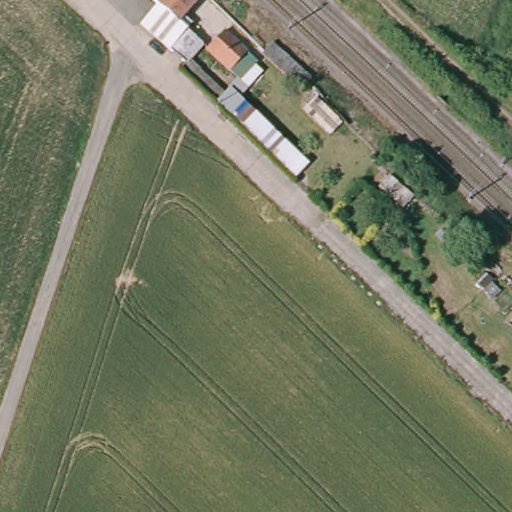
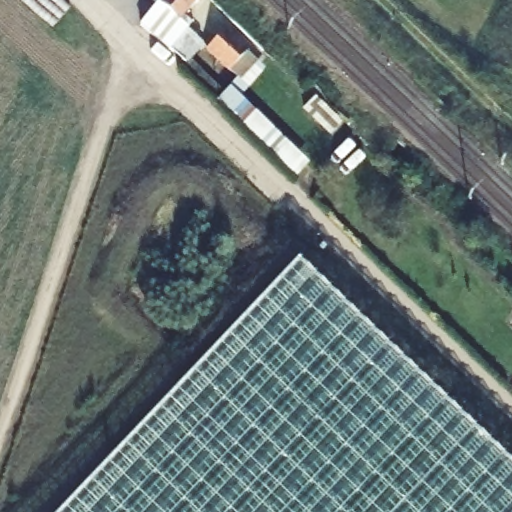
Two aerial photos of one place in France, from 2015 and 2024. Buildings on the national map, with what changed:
unchanged [(176,19),(181,25),(160,46),(138,24),(153,3),(150,0),(193,0),(176,19)]
demolished [(222,70),(198,48),(218,28),(241,49),(222,70)]
new [(265,67),(240,95),(309,163),(296,178),(216,102),(237,79),(207,50),(226,29),(265,67)]
new [(512,483),(512,512),(66,512),(282,282),(512,483)]

